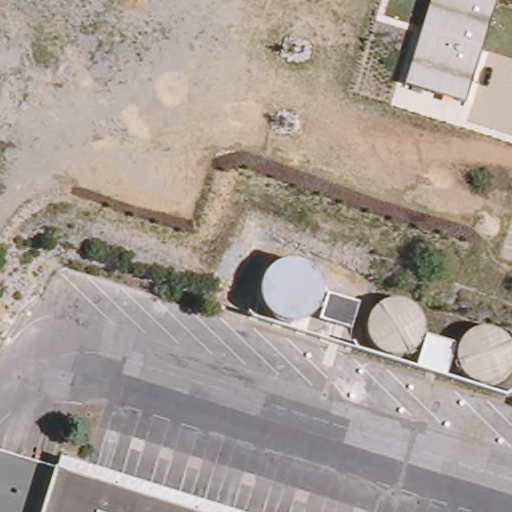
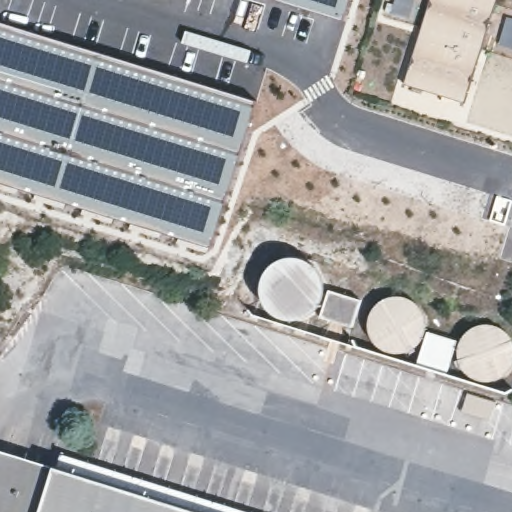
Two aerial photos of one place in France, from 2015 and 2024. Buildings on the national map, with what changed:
new [(284,3),(275,0),(350,0),(344,20),(284,3)]
new [(416,0),(410,20),(392,15),(396,0),(416,0)]
unchanged [(496,0),(465,102),(405,85),(432,0),(496,0)]
new [(222,218),(210,251),(180,240),(159,235),(132,225),(0,183),(0,22),(256,100),(222,218)]
unchanged [(329,292),(359,300),(352,326),(322,318),(329,292)]
demolished [(417,347),(412,352),(405,356),(397,358),(389,356),(381,353),(374,348),(369,341),(365,335),(364,328),(367,313),(370,307),(375,303),(380,299),(387,297),(394,296),(401,296),(410,300),(415,304),(420,310),(424,318),(425,326),(425,333),(417,347)]
demolished [(460,335),(467,330),(473,326),(482,325),(490,325),(496,328),(504,331),(509,337),(512,343),(512,367),(510,375),(501,382),(494,385),(486,385),(480,386),(474,385),(467,380),(464,377),(459,370),(456,362),(455,354),(455,342),(460,335)]
unchanged [(0,447),(209,512),(0,512),(0,447)]

